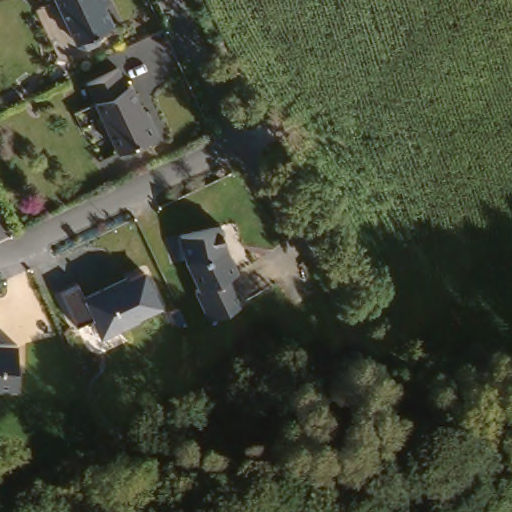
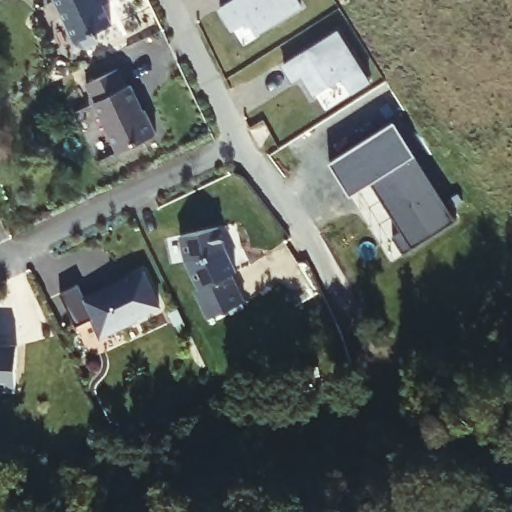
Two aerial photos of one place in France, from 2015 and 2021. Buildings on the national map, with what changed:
unchanged [(93,24),(98,33),(85,39),(77,36),(58,0),(103,0),(111,16),(93,24)]
new [(296,0),(301,6),(257,34),(248,20),(232,30),(219,10),(235,0),(296,0)]
new [(338,32),(370,83),(353,94),(343,77),(314,94),(302,75),(293,81),(284,66),(338,32)]
unchanged [(124,149),(91,81),(122,66),(131,84),(136,82),(151,113),(153,112),(162,130),(124,149)]
new [(394,122),(458,220),(404,254),(395,240),(408,233),(374,180),(350,197),(329,164),(394,122)]
unchanged [(198,288),(203,285),(199,279),(189,258),(184,233),(224,224),(227,234),(229,243),(230,247),(241,269),(236,271),(249,298),(212,315),(198,288)]
unchanged [(138,318),(139,322),(101,339),(92,319),(77,327),(62,295),(79,288),(86,300),(146,273),(162,307),(138,318)]
unchanged [(13,393),(0,392),(0,345),(14,346),(13,393)]

